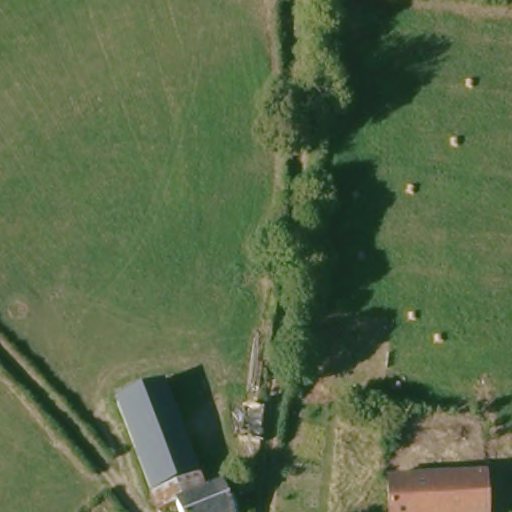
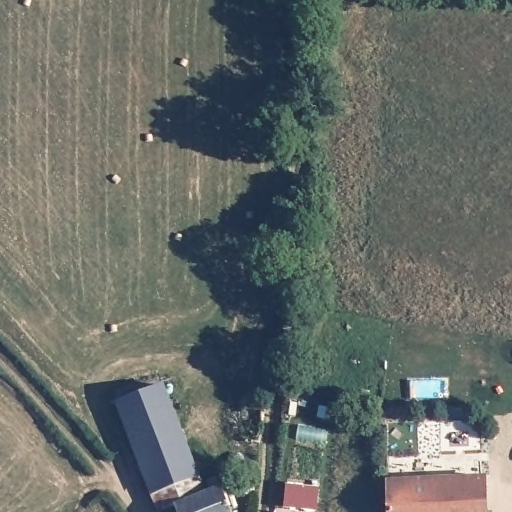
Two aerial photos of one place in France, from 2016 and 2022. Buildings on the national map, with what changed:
unchanged [(145,391),(165,386),(197,479),(156,493),(119,401),(145,391)]
unchanged [(260,400),(257,439),(239,437),(240,399),(260,400)]
unchanged [(483,476),(486,512),(389,512),(387,481),(483,476)]
unchanged [(186,505),(230,496),(233,512),(184,512),(182,505),(186,505)]

